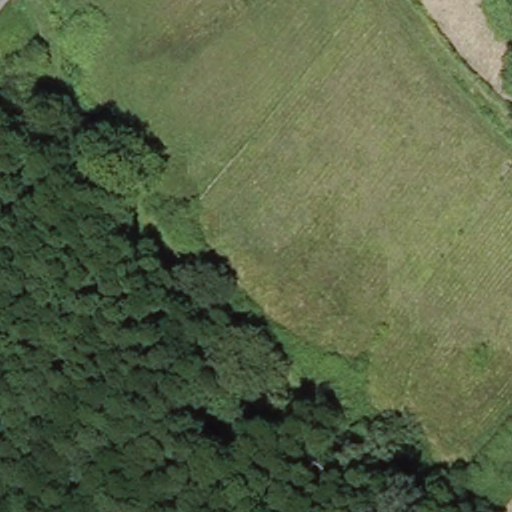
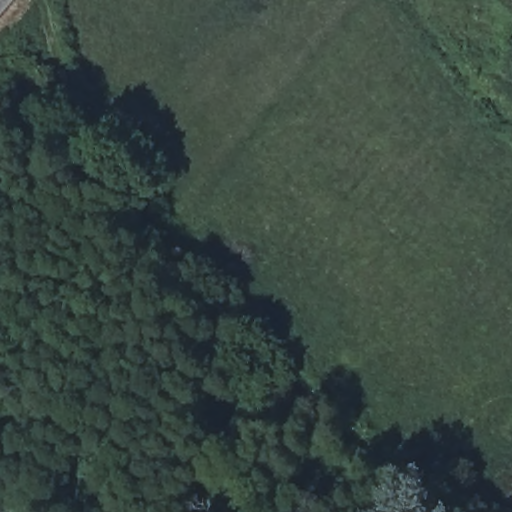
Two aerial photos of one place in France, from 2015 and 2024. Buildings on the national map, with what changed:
[]

